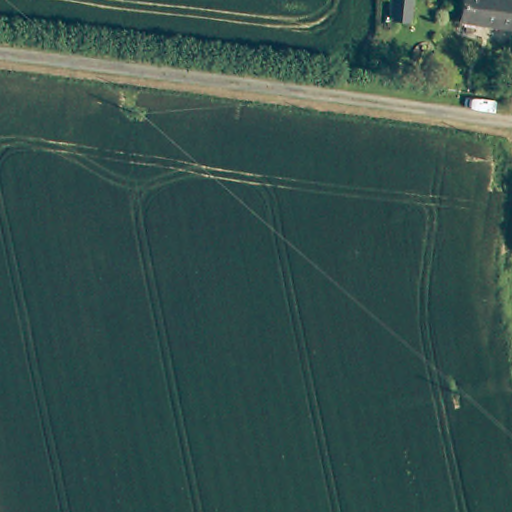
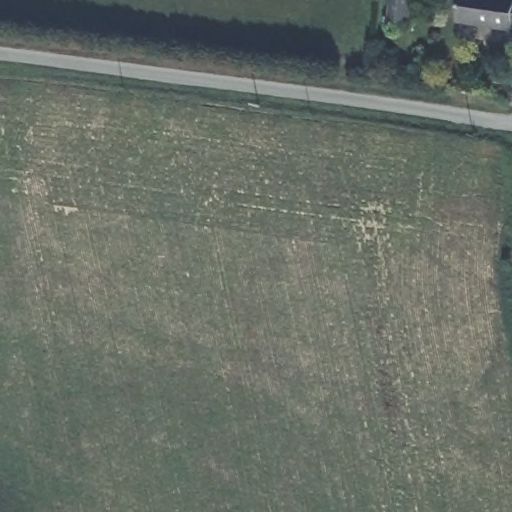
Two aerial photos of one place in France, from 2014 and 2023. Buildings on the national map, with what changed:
unchanged [(408,0),(406,21),(388,19),(390,0),(408,0)]
unchanged [(500,27),(500,29),(485,27),(458,23),(462,0),(500,0),(500,2),(503,3),(503,6),(512,7),(512,29),(500,27)]

